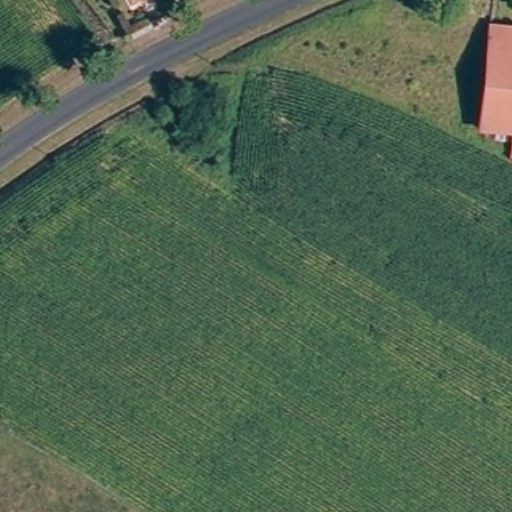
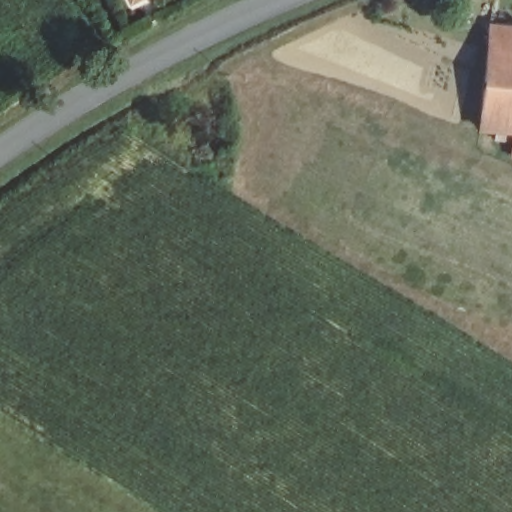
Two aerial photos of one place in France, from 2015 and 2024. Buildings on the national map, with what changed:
unchanged [(488,24),(512,26),(512,138),(475,134),(488,24)]
unchanged [(512,161),(509,160),(512,142),(512,161)]

